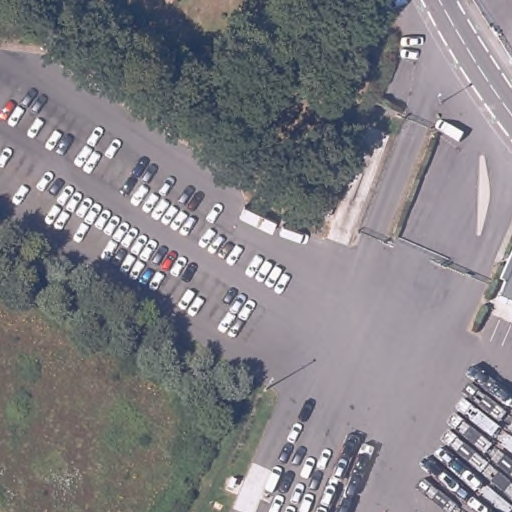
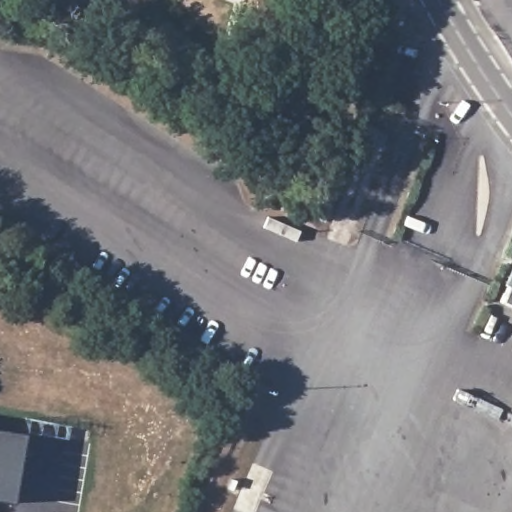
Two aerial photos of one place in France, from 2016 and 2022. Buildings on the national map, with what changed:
unchanged [(501,304),(508,288),(501,285),(512,259),(512,308),(501,304)]
new [(10,503),(0,501),(0,429),(24,433),(10,503)]

